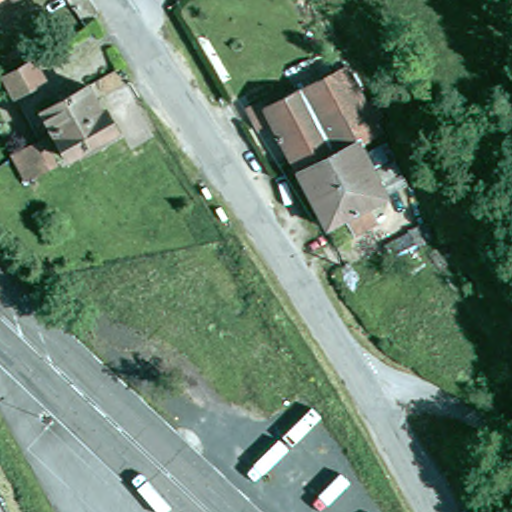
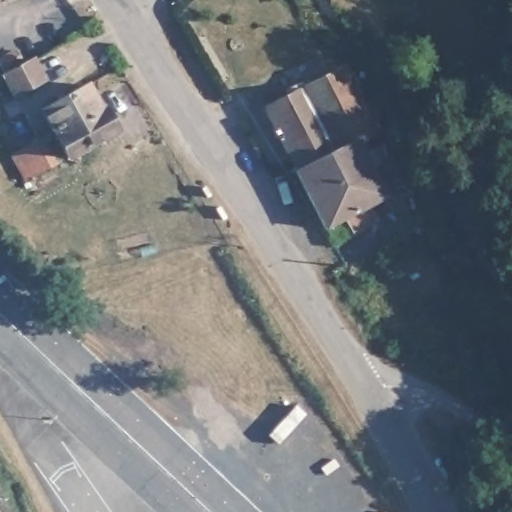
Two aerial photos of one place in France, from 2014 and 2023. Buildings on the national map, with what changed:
unchanged [(20,101),(10,82),(40,67),(49,87),(20,101)]
unchanged [(260,131),(250,111),(262,105),(278,96),(282,101),(342,69),(372,127),(357,135),(320,158),(297,172),(272,125),(260,131)]
unchanged [(94,94),(106,119),(110,117),(122,140),(72,166),(47,117),(94,94)]
unchanged [(365,150),(380,141),(389,157),(394,156),(407,180),(386,191),(387,194),(369,204),(375,217),(353,230),(345,217),(326,227),(297,172),(320,158),(357,135),(365,150)]
unchanged [(58,177),(37,185),(25,156),(46,147),(58,177)]

